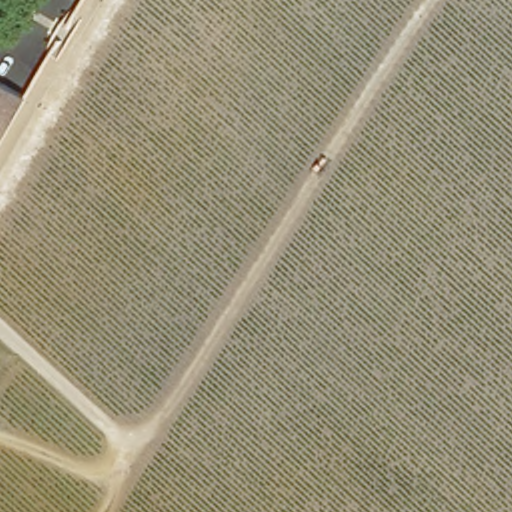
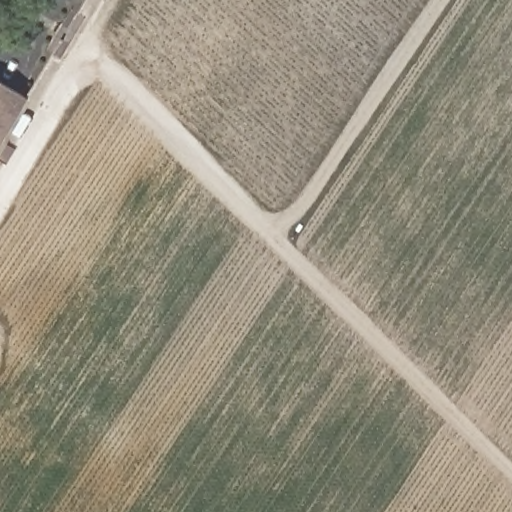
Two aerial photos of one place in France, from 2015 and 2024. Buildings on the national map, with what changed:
unchanged [(21,92),(0,127),(0,79),(21,92)]

